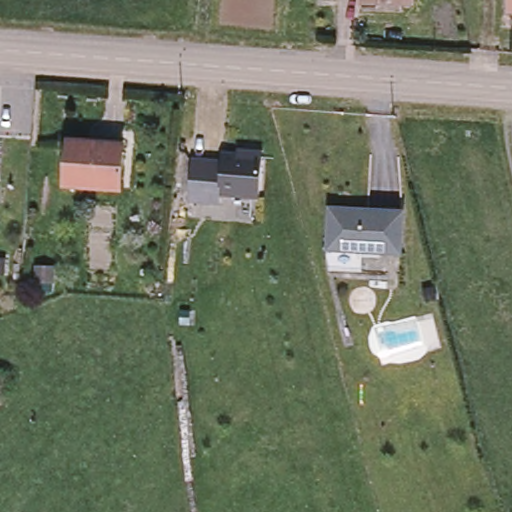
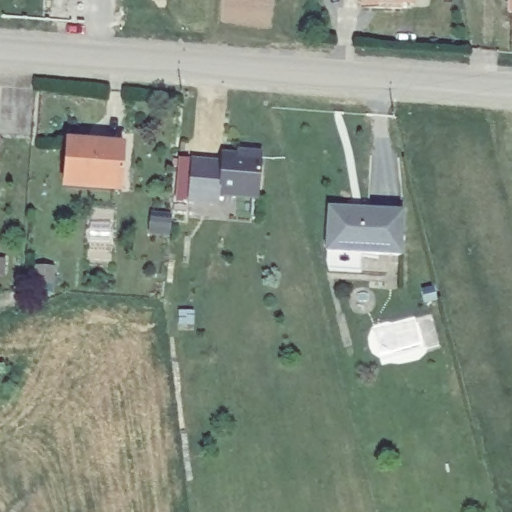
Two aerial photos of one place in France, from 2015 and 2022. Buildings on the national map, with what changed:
unchanged [(413,2),(402,2),(402,10),(362,8),(362,0),(413,0),(413,2)]
unchanged [(506,0),(512,0),(512,13),(505,13),(506,0)]
unchanged [(124,146),(120,189),(67,186),(70,143),(124,146)]
unchanged [(220,196),(219,205),(187,202),(190,161),(220,163),(222,155),(237,156),(237,151),(262,153),(262,158),(258,199),(220,196)]
unchanged [(329,272),(327,261),(327,251),(330,214),(335,209),(348,210),(352,215),(367,216),(368,211),(404,213),(401,256),(362,254),(362,274),(329,272)]
unchanged [(55,269),(55,285),(39,284),(40,269),(55,269)]

